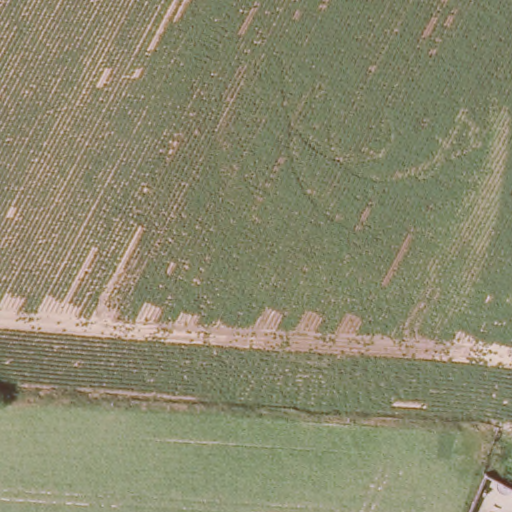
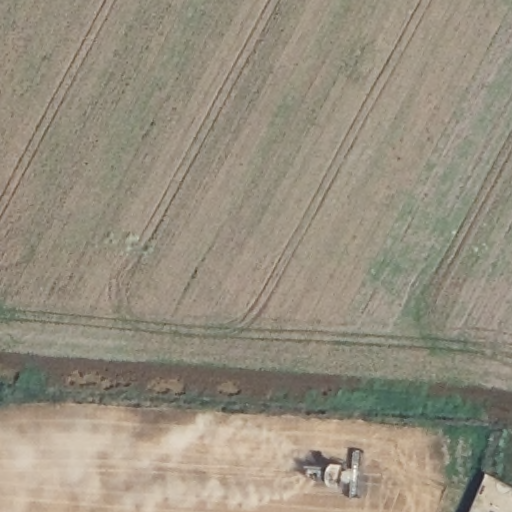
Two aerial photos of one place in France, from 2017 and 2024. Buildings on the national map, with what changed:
unchanged [(487,472),(503,480),(497,493),(481,486),(487,472)]

